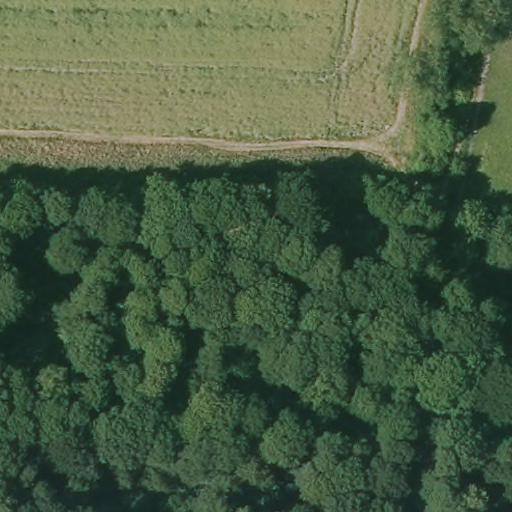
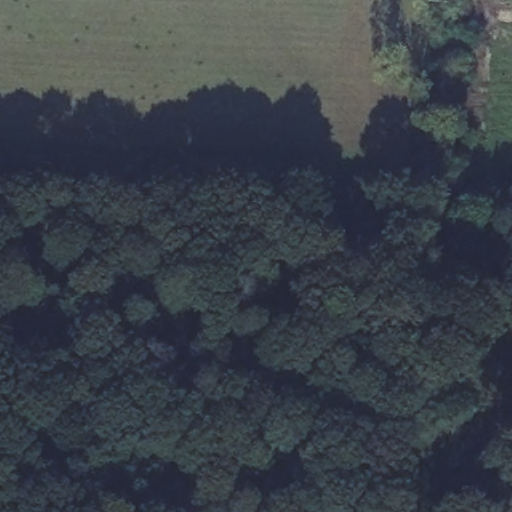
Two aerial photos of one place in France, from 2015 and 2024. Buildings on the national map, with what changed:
unchanged [(400,181),(400,197),(375,196),(375,181),(400,181)]

